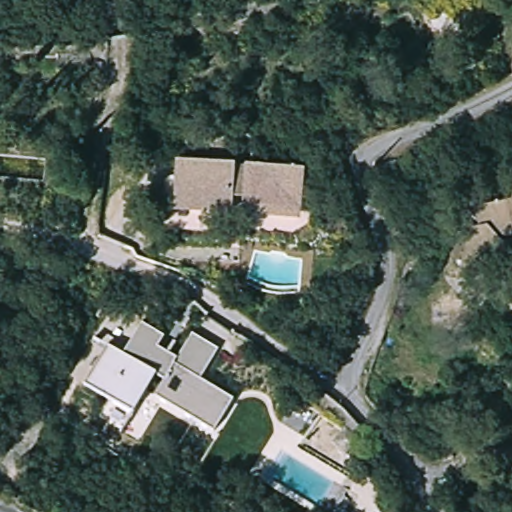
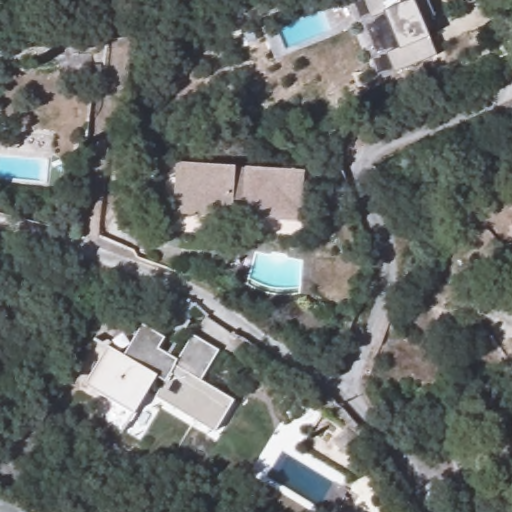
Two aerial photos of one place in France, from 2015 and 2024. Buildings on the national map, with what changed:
new [(427,20),(431,29),(426,33),(427,36),(435,55),(393,74),(385,54),(399,50),(384,14),(370,18),(363,0),(426,0),(434,16),(427,20)]
unchanged [(17,144),(15,162),(0,160),(0,143),(17,144)]
unchanged [(306,219),(243,215),(244,210),(238,210),(238,215),(174,212),(178,156),(241,160),(240,166),(246,166),(246,161),(309,164),(306,219)]
unchanged [(512,266),(463,278),(478,232),(488,230),(472,212),(512,203),(512,266)]
unchanged [(210,431),(152,396),(162,379),(152,373),(130,410),(82,381),(104,344),(120,354),(138,323),(160,336),(154,347),(174,359),(189,334),(215,348),(196,379),(229,399),(210,431)]

